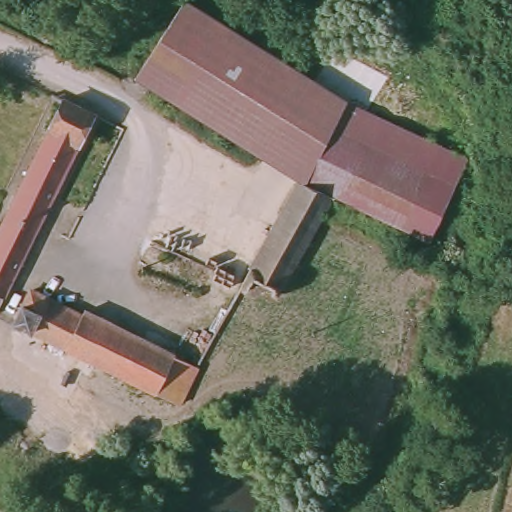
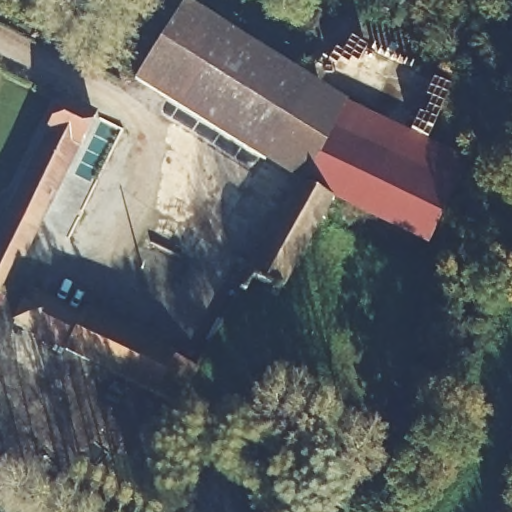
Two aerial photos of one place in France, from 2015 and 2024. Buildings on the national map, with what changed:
unchanged [(133,80),(182,0),(310,81),(270,152),(263,162),(184,112),(133,80)]
unchanged [(310,81),(344,102),(302,187),(297,184),(263,162),(270,152),(310,81)]
unchanged [(65,96),(94,110),(0,297),(0,225),(65,96)]
unchanged [(344,102),(465,165),(422,245),(327,202),(302,187),(344,102)]
unchanged [(268,300),(233,293),(297,184),(302,187),(327,202),(268,300)]
unchanged [(28,293),(77,319),(82,311),(197,370),(177,408),(11,326),(28,293)]

